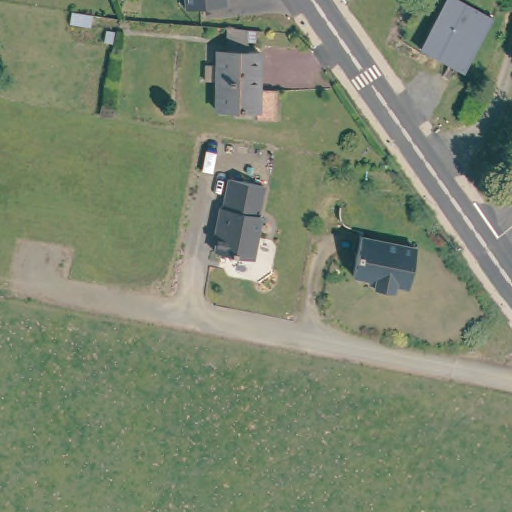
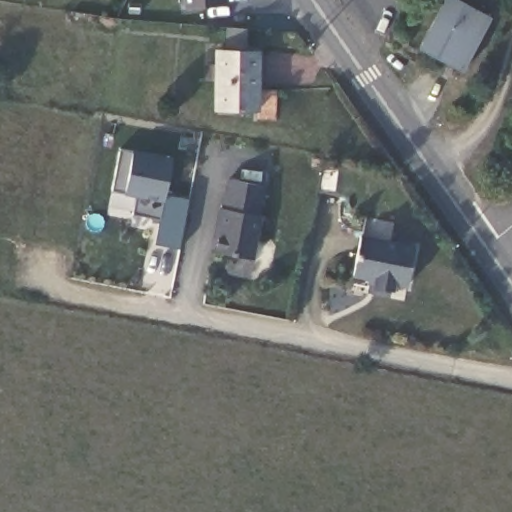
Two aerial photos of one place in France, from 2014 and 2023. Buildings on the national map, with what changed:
unchanged [(227,0),(227,5),(187,9),(187,0),(227,0)]
unchanged [(460,81),(417,58),(447,4),(489,26),(460,81)]
unchanged [(268,58),(265,95),(282,96),(280,122),(260,121),(260,110),(219,107),(221,81),(217,81),(210,80),(212,64),(216,64),(220,64),(222,65),(223,49),(231,50),(232,29),(232,28),(259,30),(259,34),(257,52),(257,57),(268,58)]
new [(167,195),(188,199),(177,250),(152,245),(157,219),(128,212),(132,195),(112,192),(120,147),(136,151),(172,159),(167,195)]
unchanged [(211,249),(216,226),(213,226),(217,205),(220,206),(227,176),(261,184),(255,213),(258,214),(249,258),(211,249)]
unchanged [(393,291),(375,286),(376,279),(353,273),(362,234),(417,247),(408,285),(395,282),(393,291)]

